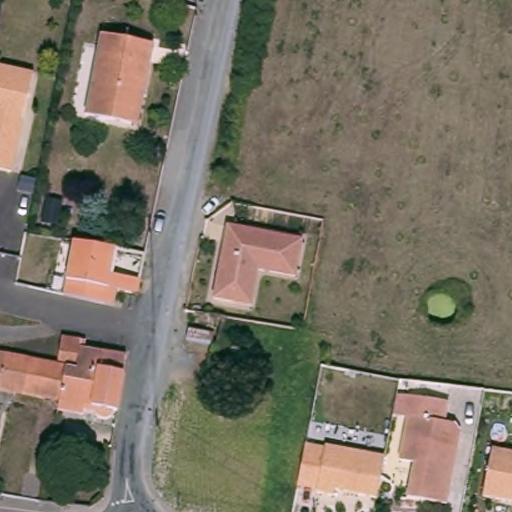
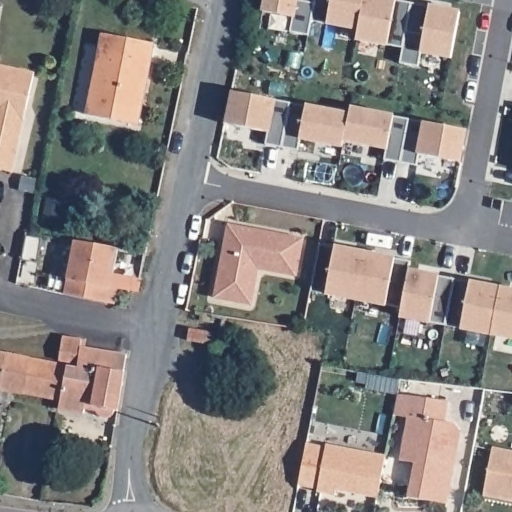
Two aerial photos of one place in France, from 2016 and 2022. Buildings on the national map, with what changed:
new [(264,0),(314,0),(311,18),(308,33),(291,30),(294,15),(262,9),(264,0)]
new [(314,0),(363,0),(358,27),(311,18),(314,0)]
new [(358,27),(363,0),(408,0),(411,0),(403,45),(356,37),(358,27)]
new [(403,45),(411,0),(460,9),(451,55),(421,50),(418,64),(400,61),(403,45)]
unchanged [(153,83),(145,83),(137,122),(93,115),(109,33),(162,43),(153,83)]
unchanged [(33,70),(10,169),(0,167),(0,62),(33,70)]
new [(230,89),(290,101),(282,146),(266,143),(269,130),(224,122),(230,89)]
new [(290,101),(349,112),(344,138),(343,144),(301,136),(298,149),(282,146),(290,101)]
new [(349,112),(350,106),(409,117),(401,160),(385,157),(387,146),(344,138),(349,112)]
new [(409,117),(468,128),(462,160),(419,152),(417,163),(401,160),(409,117)]
unchanged [(230,300),(211,297),(219,248),(220,240),(223,224),(298,237),(292,274),(254,267),(251,286),(248,303),(230,300)]
new [(320,241),(366,250),(357,299),(312,290),(320,241)]
unchanged [(92,281),(100,243),(148,253),(140,291),(92,281)]
new [(366,250),(411,259),(410,268),(402,308),(357,299),(366,250)]
new [(402,308),(410,268),(455,276),(446,325),(401,316),(402,308)]
new [(455,276),(501,285),(492,334),(446,325),(455,276)]
new [(512,287),(512,338),(492,334),(501,285),(512,287)]
unchanged [(186,339),(189,327),(214,332),(211,344),(186,339)]
unchanged [(72,375),(74,365),(83,367),(84,362),(65,359),(70,335),(89,338),(94,339),(93,346),(134,352),(124,402),(123,410),(121,409),(121,411),(120,414),(118,416),(115,418),(113,419),(110,419),(107,418),(105,417),(103,415),(101,412),(101,409),(101,406),(92,405),(91,412),(66,409),(68,400),(72,375)]
unchanged [(222,343),(234,345),(246,347),(241,373),(211,368),(216,343),(218,343),(222,343)]
unchanged [(75,363),(74,365),(72,375),(68,400),(0,388),(0,349),(75,363)]
unchanged [(443,506),(404,498),(410,464),(396,461),(404,418),(399,417),(390,415),(394,394),(403,396),(445,404),(441,424),(451,426),(457,435),(454,449),(451,465),(443,506)]
unchanged [(380,483),(377,496),(336,488),(335,494),(318,490),(318,488),(299,484),(307,442),(326,446),(327,442),(386,453),(380,483)]
unchanged [(512,500),(484,495),(493,447),(512,451),(512,500)]

